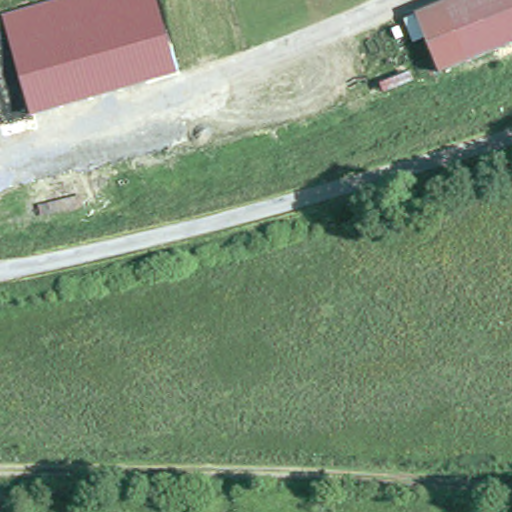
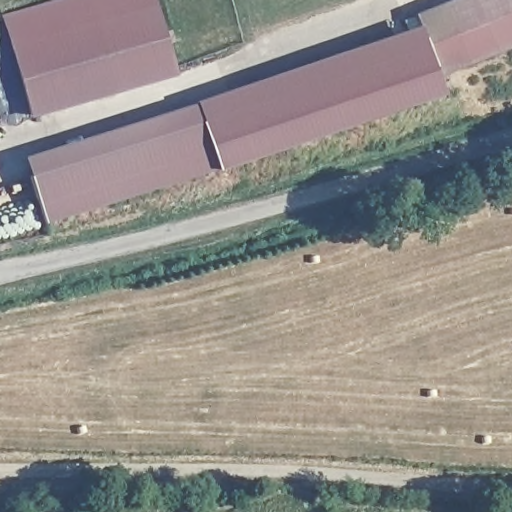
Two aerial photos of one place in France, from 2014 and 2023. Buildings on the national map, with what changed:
unchanged [(32,117),(1,13),(49,0),(157,0),(178,73),(32,117)]
new [(422,29),(418,19),(463,0),(512,0),(512,28),(476,39),(479,59),(442,75),(446,90),(218,167),(197,100),(419,24),(422,29)]
demolished [(422,29),(418,19),(463,0),(512,0),(512,28),(476,39),(479,59),(442,75),(422,29)]
unchanged [(512,28),(512,46),(479,59),(476,39),(512,28)]
new [(44,221),(25,155),(197,100),(218,167),(44,221)]

